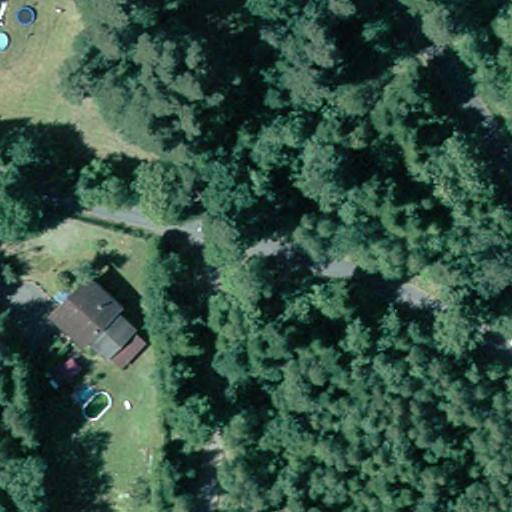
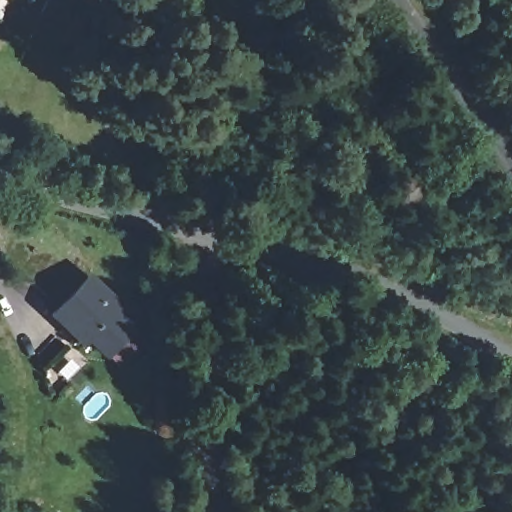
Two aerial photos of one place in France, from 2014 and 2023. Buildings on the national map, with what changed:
unchanged [(82,336),(77,341),(45,311),(78,274),(110,304),(106,309),(123,326),(99,353),(82,336)]

